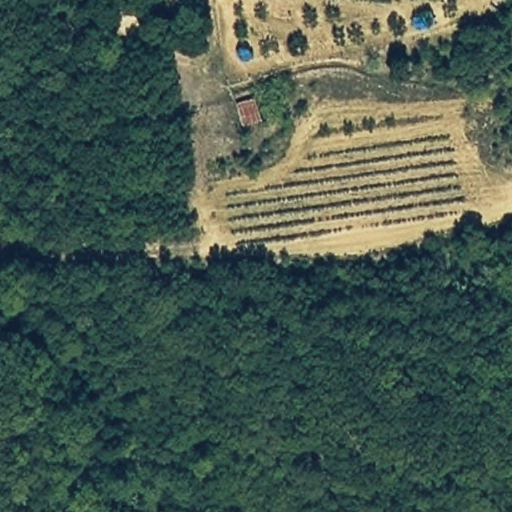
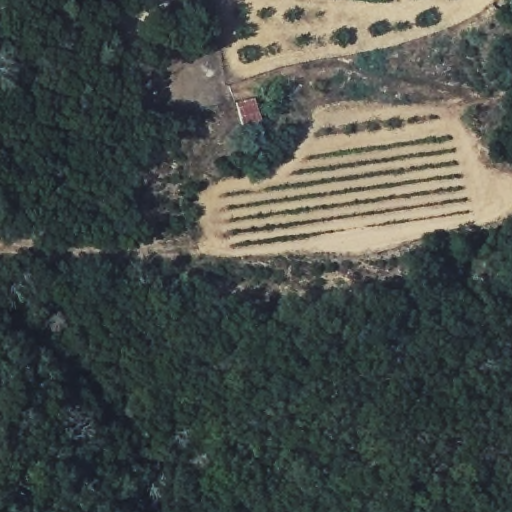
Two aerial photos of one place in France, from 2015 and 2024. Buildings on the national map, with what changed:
unchanged [(235,104),(254,98),(263,121),(243,127),(235,104)]

